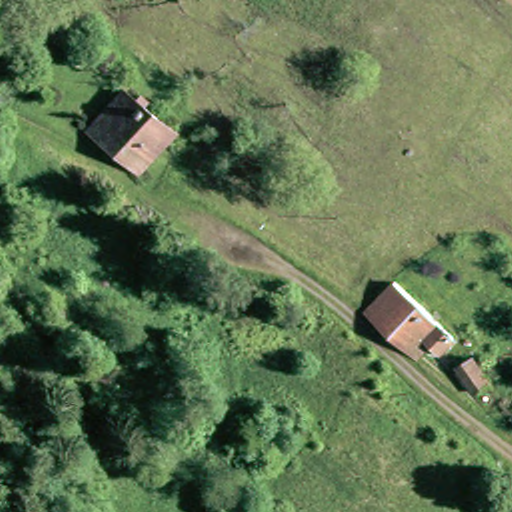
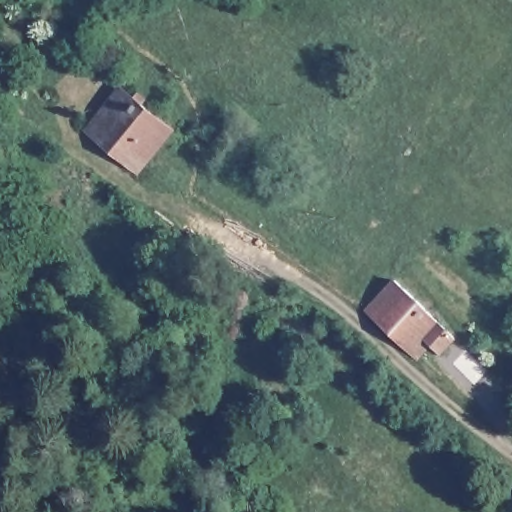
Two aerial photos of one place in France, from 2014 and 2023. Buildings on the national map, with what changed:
unchanged [(118,80),(133,92),(139,87),(145,92),(139,98),(169,123),(154,142),(135,167),(80,123),(118,80)]
unchanged [(376,290),(392,272),(453,332),(437,348),(426,338),(411,352),(362,304),(376,290)]
unchanged [(459,367),(477,355),(500,377),(474,393),(459,367)]

